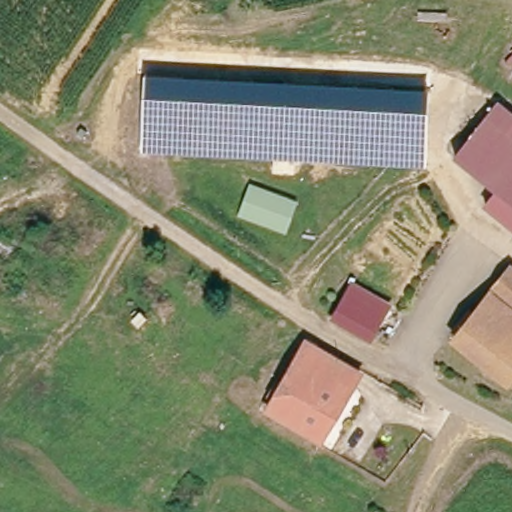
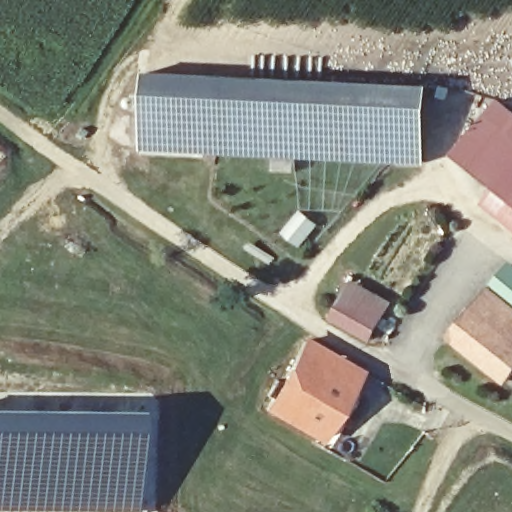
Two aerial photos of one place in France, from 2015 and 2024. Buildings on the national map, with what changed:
unchanged [(296,160),(295,174),(273,172),(274,157),(142,150),(146,71),(430,84),(427,166),(296,160)]
unchanged [(512,103),(512,192),(496,180),(456,149),(500,94),(512,103)]
unchanged [(485,196),(496,180),(512,192),(512,218),(485,196)]
demolished [(74,263),(34,231),(61,197),(101,230),(74,263)]
unchanged [(457,337),(512,268),(512,381),(457,337)]
unchanged [(400,313),(393,321),(405,329),(400,336),(393,332),(390,337),(381,333),(333,308),(351,281),(400,313)]
unchanged [(270,411),(274,405),(270,402),(278,387),(283,390),(305,346),(360,376),(321,441),(270,411)]
new [(0,510),(0,409),(138,410),(137,511),(0,510)]

